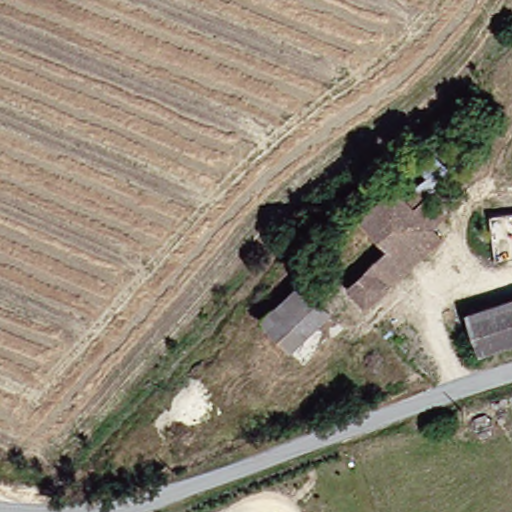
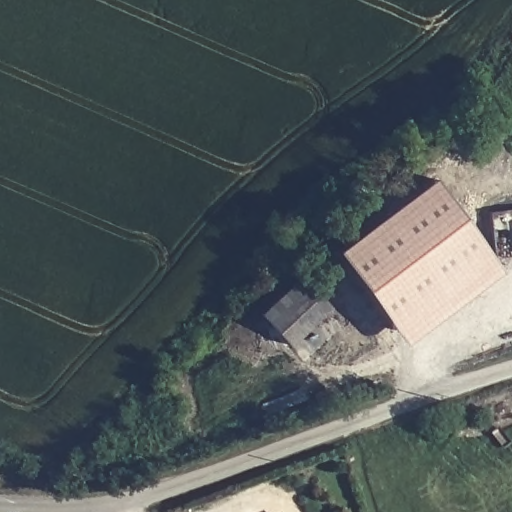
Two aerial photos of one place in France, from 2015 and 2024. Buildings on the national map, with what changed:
demolished [(397,172),(410,185),(423,173),(445,196),(432,209),(443,223),(403,253),(388,237),(360,204),(385,182),(397,172)]
new [(509,272),(412,343),(347,249),(440,177),(509,272)]
demolished [(350,271),(388,237),(403,253),(415,265),(375,300),(350,271)]
unchanged [(334,314),(294,348),(283,335),(268,315),(295,292),(307,281),(334,314)]
unchanged [(290,511),(290,512),(288,512),(290,511)]

